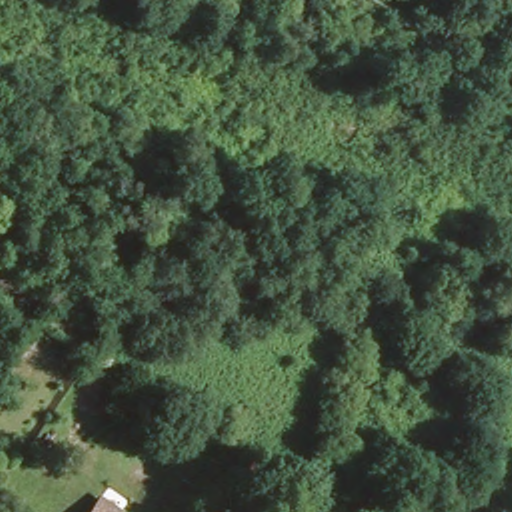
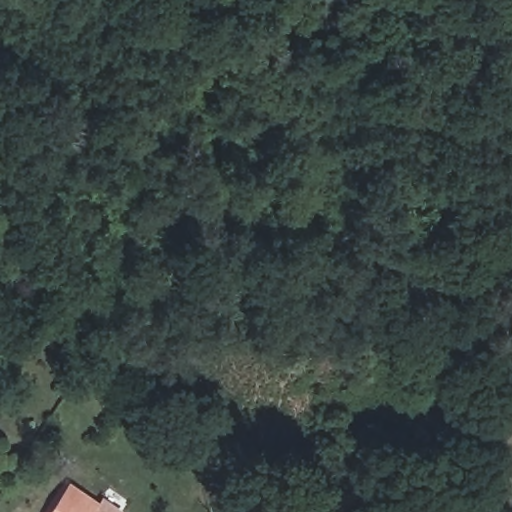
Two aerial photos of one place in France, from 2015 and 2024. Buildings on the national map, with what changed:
new [(100,502),(103,497),(125,512),(50,512),(70,483),(100,502)]
demolished [(102,512),(88,512),(91,507),(102,512)]

